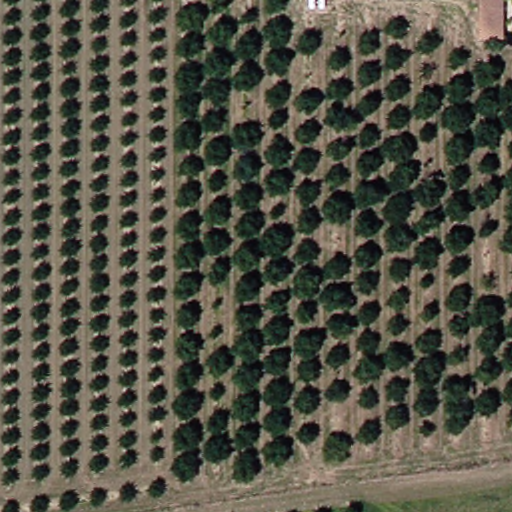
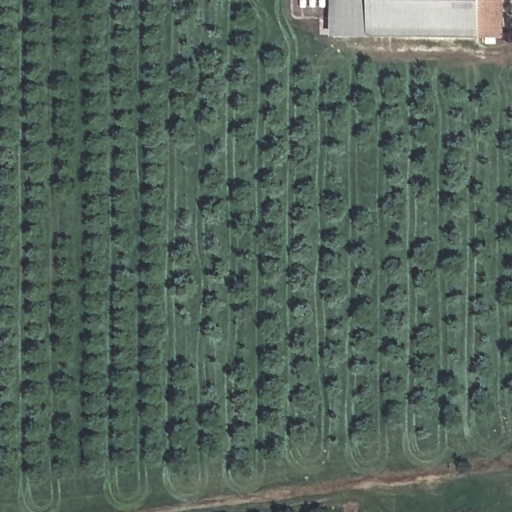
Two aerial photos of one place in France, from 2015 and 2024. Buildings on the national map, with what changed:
new [(371,37),(332,37),(329,0),(472,0),(472,40),(371,37)]
unchanged [(472,40),(472,0),(499,0),(499,40),(472,40)]

